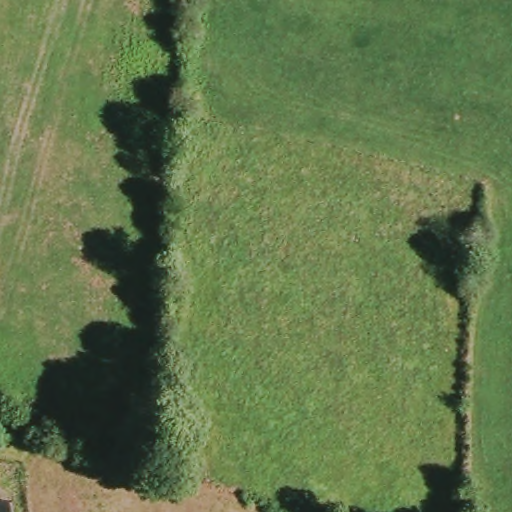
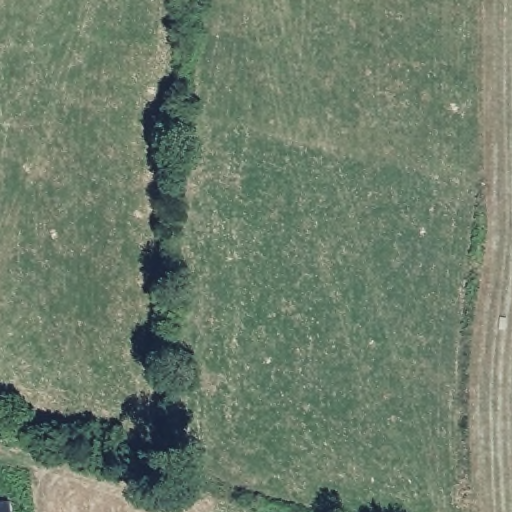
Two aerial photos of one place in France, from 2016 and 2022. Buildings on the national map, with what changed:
unchanged [(14,512),(0,512),(0,500),(12,500),(14,512)]

